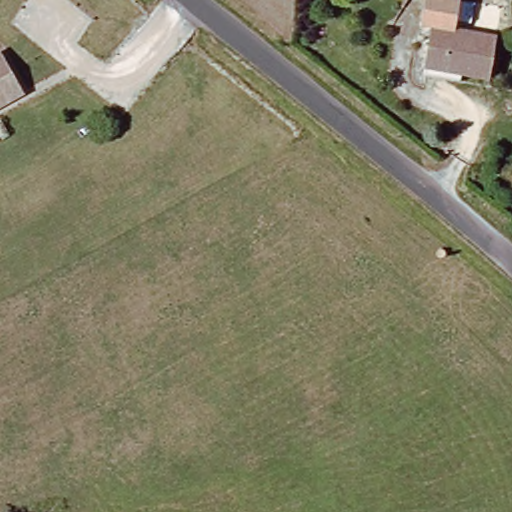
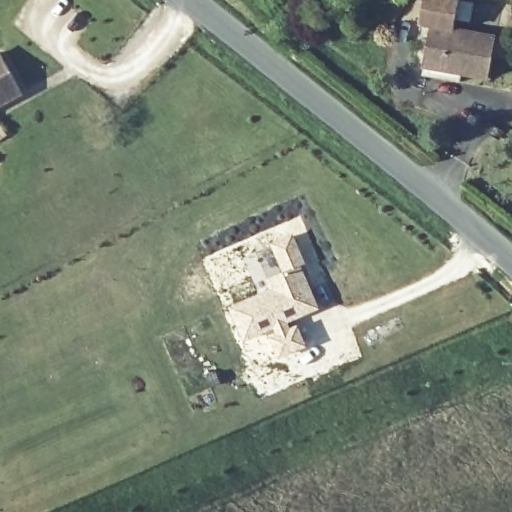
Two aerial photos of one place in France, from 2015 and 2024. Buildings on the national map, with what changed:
unchanged [(424,64),(434,25),(430,24),(423,22),(429,0),(461,0),(465,1),(457,31),(498,42),(487,80),(460,74),(458,83),(421,74),(424,64)]
unchanged [(0,109),(0,55),(4,54),(27,94),(0,109)]
new [(272,287),(268,277),(285,270),(273,242),(292,234),(304,262),(299,264),(317,306),(285,319),(289,328),(296,325),(303,343),(278,354),(270,336),(278,333),(274,323),(243,336),(230,304),(272,287)]

